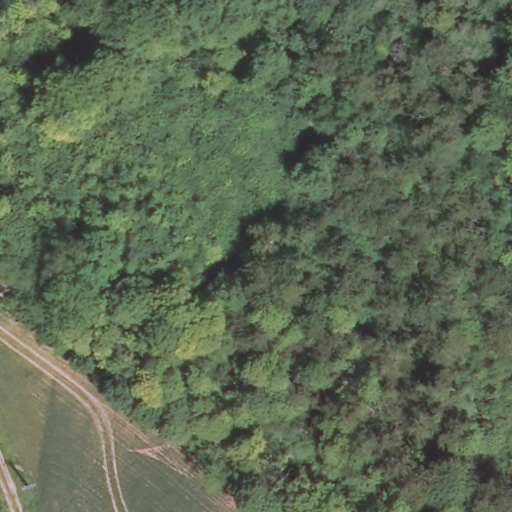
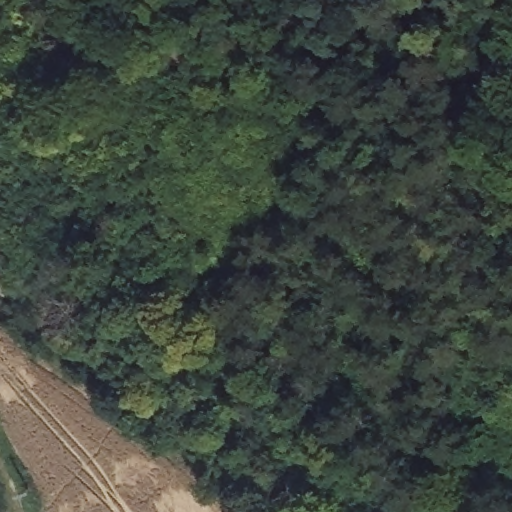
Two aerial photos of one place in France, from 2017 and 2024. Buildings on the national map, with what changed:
[]

